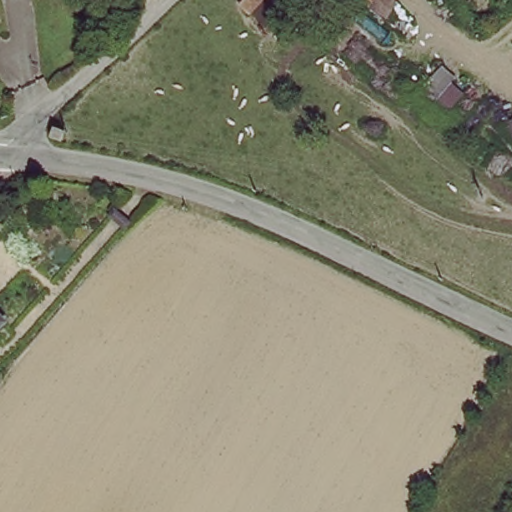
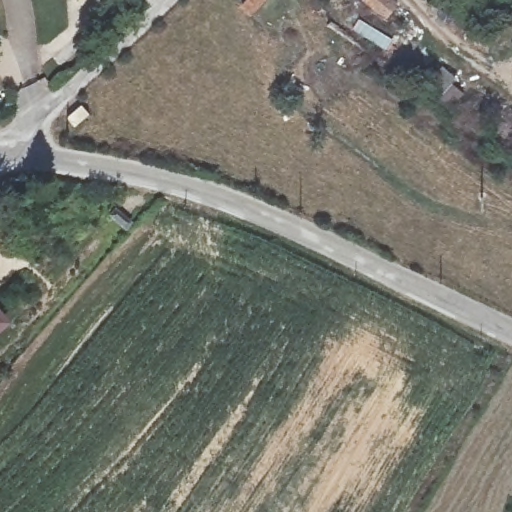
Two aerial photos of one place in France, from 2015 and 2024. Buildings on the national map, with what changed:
unchanged [(244,13),(239,8),(247,0),(255,0),(244,13)]
unchanged [(418,89),(438,66),(466,92),(444,116),(418,89)]
unchanged [(0,313),(6,320),(0,326),(0,313)]

